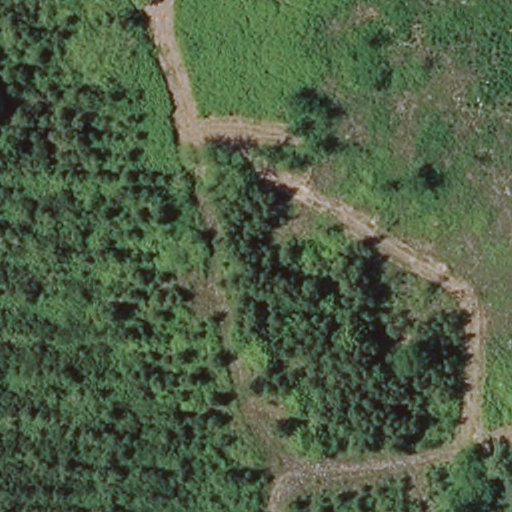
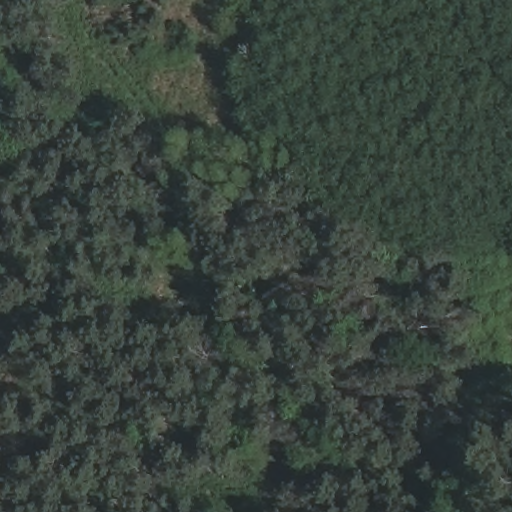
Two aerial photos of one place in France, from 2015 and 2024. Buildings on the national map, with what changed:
[]

